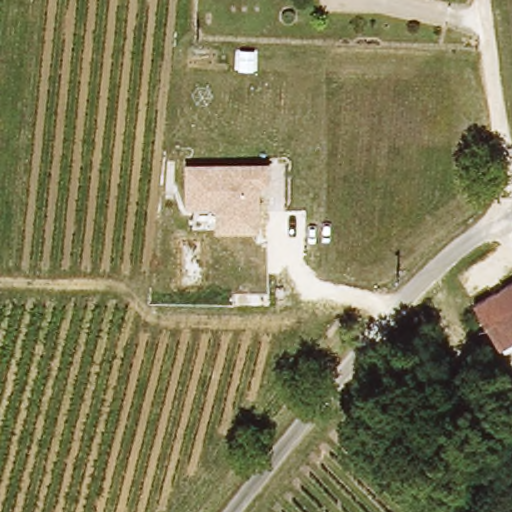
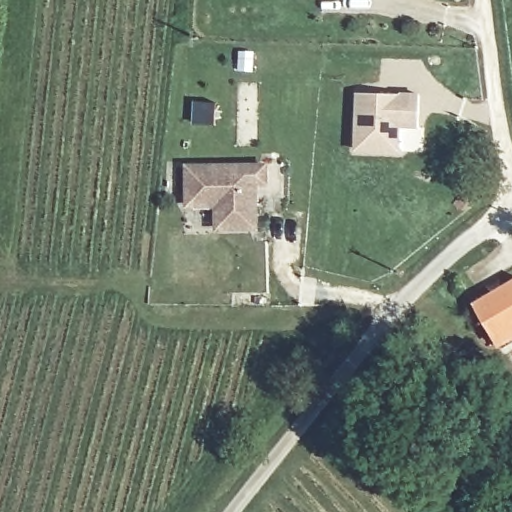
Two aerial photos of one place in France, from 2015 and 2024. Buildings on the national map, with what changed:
new [(401,128),(401,151),(354,151),(356,93),(420,93),(419,128),(401,128)]
unchanged [(215,211),(187,209),(186,164),(269,162),(270,187),(261,187),(261,231),(215,233),(215,211)]
unchanged [(474,304),(512,281),(512,332),(496,341),(474,304)]

